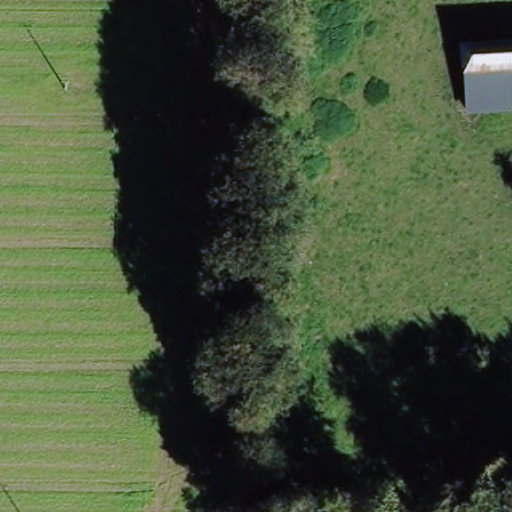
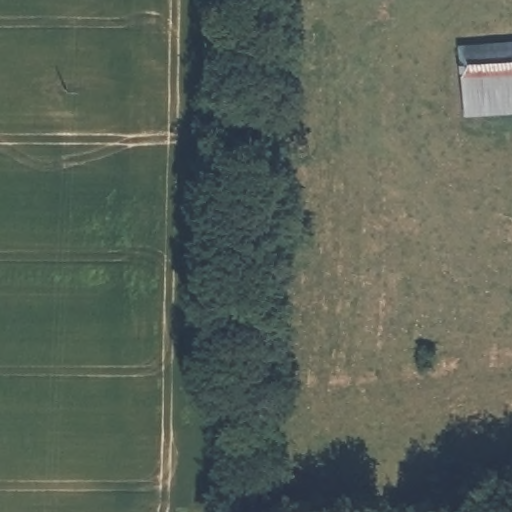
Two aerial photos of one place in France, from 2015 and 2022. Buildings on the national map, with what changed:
unchanged [(459,69),(457,40),(512,36),(512,65),(459,69)]
unchanged [(461,100),(459,69),(512,65),(512,97),(461,100)]

